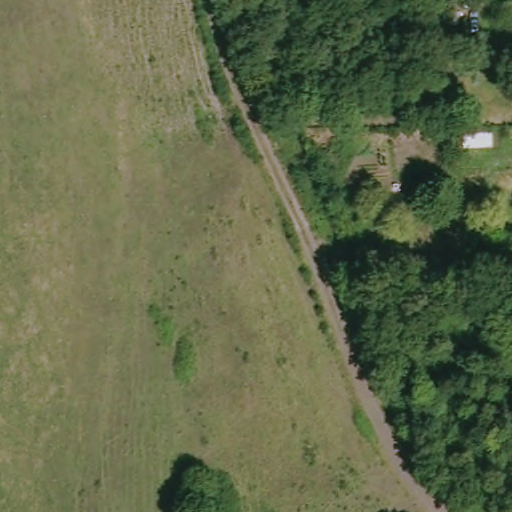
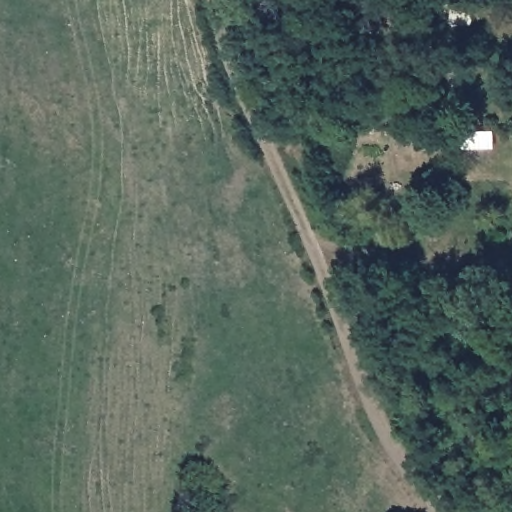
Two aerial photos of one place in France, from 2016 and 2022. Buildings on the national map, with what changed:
[]

